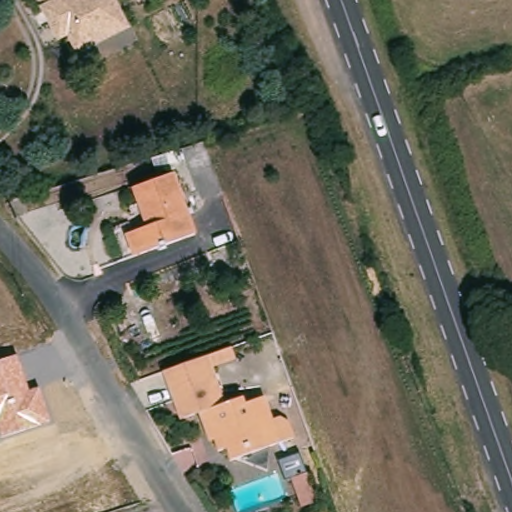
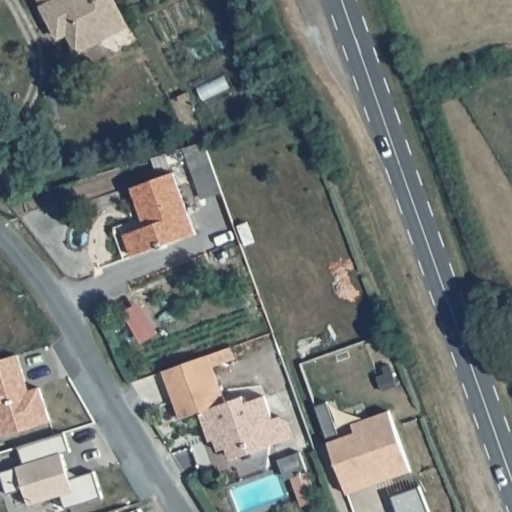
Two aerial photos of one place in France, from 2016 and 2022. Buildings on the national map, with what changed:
unchanged [(53,28),(42,8),(57,0),(112,0),(126,27),(77,51),(67,33),(57,38),(53,28)]
unchanged [(227,197),(207,204),(189,153),(209,147),(227,197)]
unchanged [(159,173),(156,163),(180,156),(182,166),(159,173)]
unchanged [(200,234),(138,257),(131,235),(152,227),(137,188),(177,173),(200,234)]
unchanged [(0,431),(0,361),(17,355),(29,391),(40,388),(51,422),(2,437),(0,431)]
unchanged [(293,422),(298,436),(236,460),(231,447),(223,450),(216,430),(211,432),(204,412),(185,419),(168,371),(212,355),(230,403),(247,396),(249,403),(268,396),(277,420),(285,417),(293,422)]
new [(344,485),(328,441),(354,432),(351,424),(367,418),(387,411),(410,470),(375,483),(347,494),(344,485)]
new [(26,465),(21,447),(65,433),(70,452),(62,454),(70,479),(94,472),(102,498),(65,510),(61,495),(29,505),(24,490),(7,495),(2,473),(26,465)]
unchanged [(317,499),(303,504),(293,476),(307,471),(317,499)]

